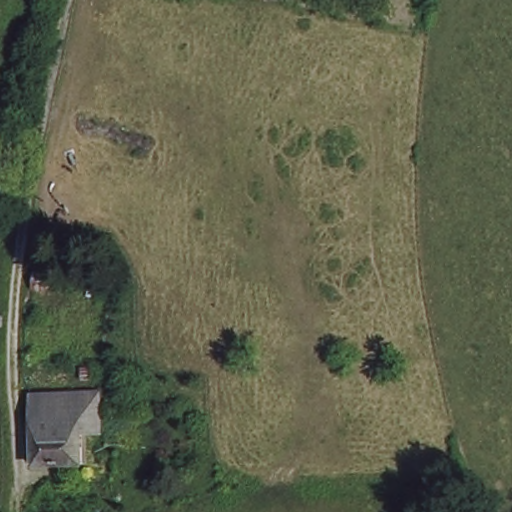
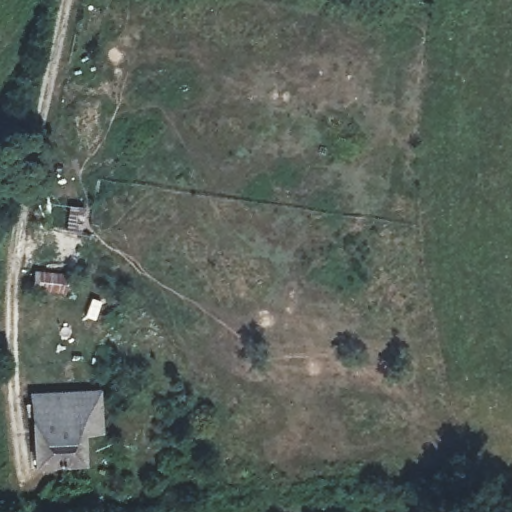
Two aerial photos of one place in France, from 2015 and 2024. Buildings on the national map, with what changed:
unchanged [(85,440),(83,472),(35,468),(34,391),(56,392),(56,400),(79,401),(79,393),(105,396),(105,441),(85,440)]

